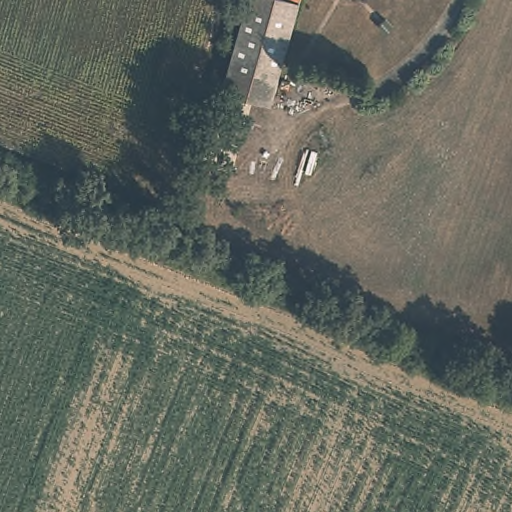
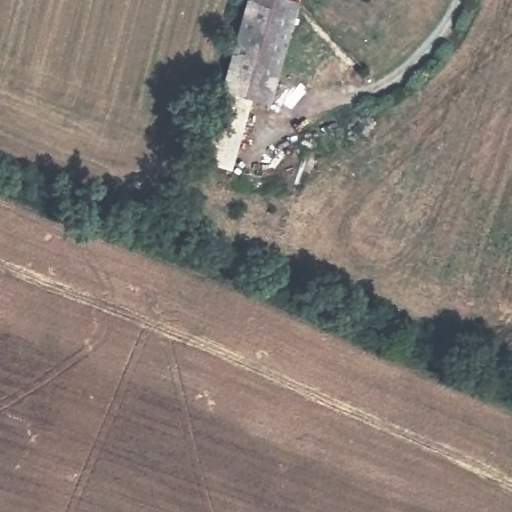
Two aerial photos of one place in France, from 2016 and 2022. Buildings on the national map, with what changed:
unchanged [(268,101),(222,87),(248,0),(298,0),(268,101)]

